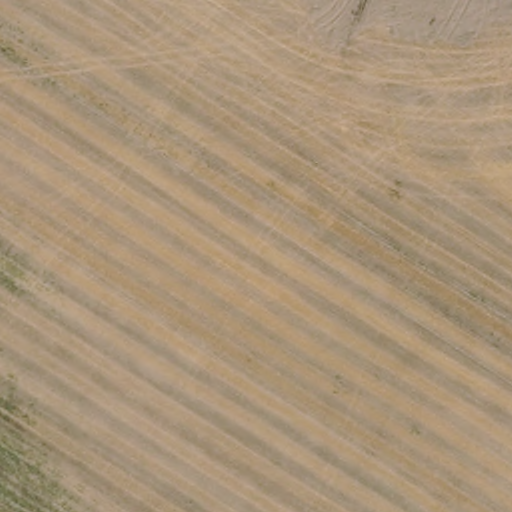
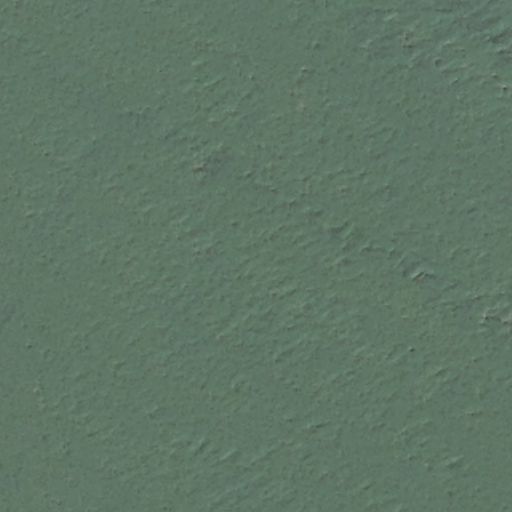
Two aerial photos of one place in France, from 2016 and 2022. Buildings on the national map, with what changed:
[]

